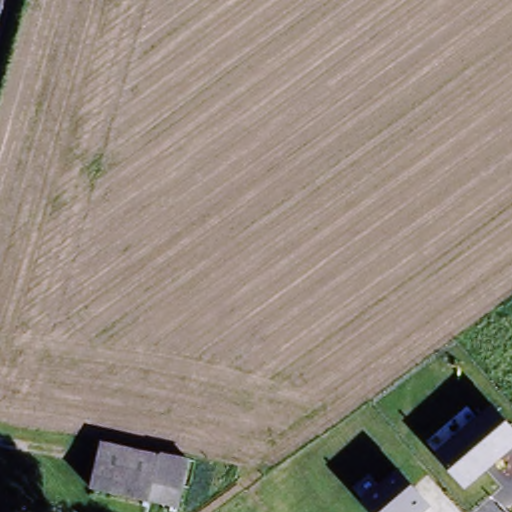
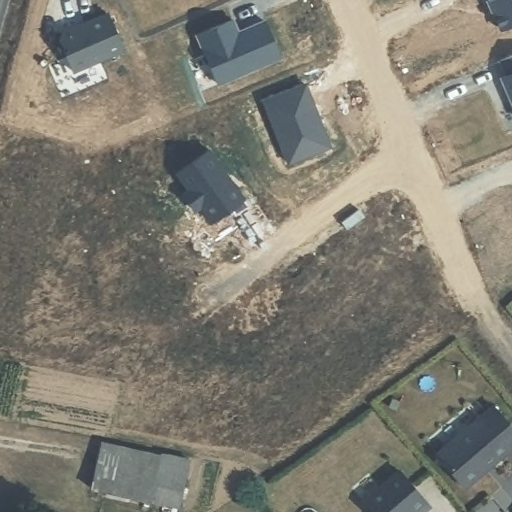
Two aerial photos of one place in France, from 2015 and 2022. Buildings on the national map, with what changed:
new [(488,0),(512,0),(512,25),(500,30),(488,0)]
new [(61,33),(75,27),(76,28),(85,25),(84,23),(107,13),(124,50),(73,71),(59,39),(61,33)]
new [(232,20),(237,32),(241,41),(251,36),(249,27),(264,21),(280,57),(218,84),(196,35),(232,20)]
new [(512,102),(501,77),(506,75),(500,61),(512,56),(512,102)]
new [(303,83),(328,145),(287,162),(262,100),(303,83)]
new [(209,150),(225,173),(224,174),(230,182),(231,180),(249,206),(235,216),(230,209),(211,222),(200,207),(195,210),(182,193),(188,189),(176,173),(209,150)]
unchanged [(512,427),(512,449),(463,490),(432,453),(490,403),(512,427)]
unchanged [(185,457),(176,509),(88,491),(95,440),(185,457)]
unchanged [(398,468),(427,504),(418,512),(368,512),(358,500),(398,468)]

